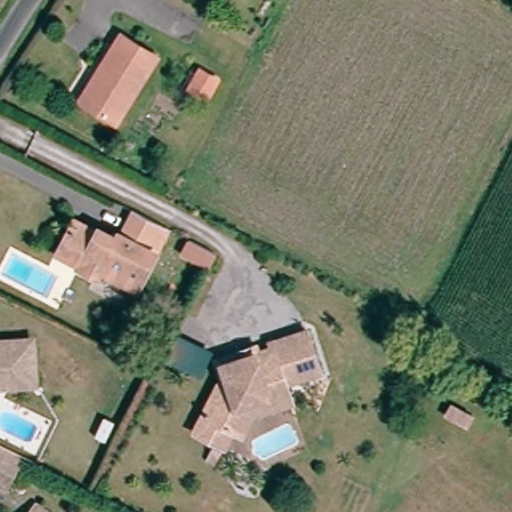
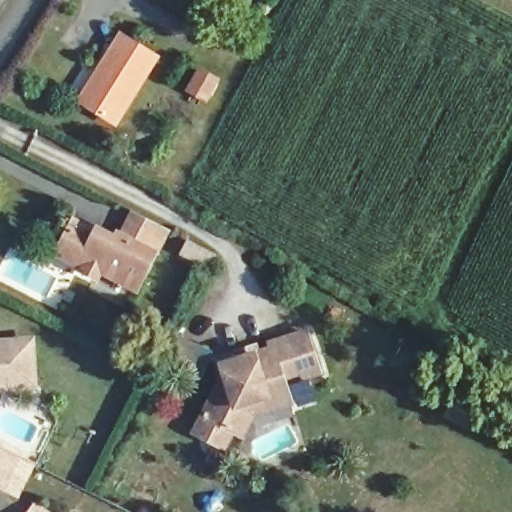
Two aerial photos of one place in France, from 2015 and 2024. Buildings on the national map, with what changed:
unchanged [(82,100),(124,36),(160,59),(117,125),(82,100)]
unchanged [(72,224),(112,243),(116,234),(130,209),(150,219),(165,227),(151,253),(131,292),(99,276),(92,285),(78,277),(54,264),(62,245),(72,224)]
unchanged [(214,255),(186,241),(193,226),(220,240),(214,255)]
unchanged [(253,409),(245,428),(235,423),(226,441),(195,426),(219,377),(222,376),(216,354),(256,341),(258,347),(272,343),(271,338),(307,327),(320,367),(285,378),(287,385),(291,397),(253,409)]
unchanged [(24,347),(25,389),(0,389),(0,347),(24,347)]
unchanged [(21,468),(9,493),(0,489),(0,458),(21,468)]
unchanged [(40,512),(34,512),(35,509),(40,512)]

